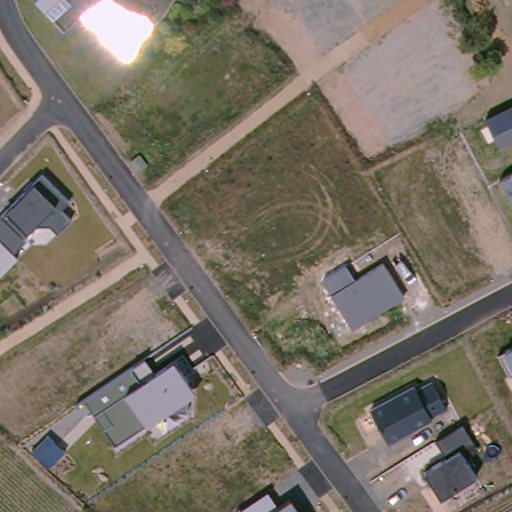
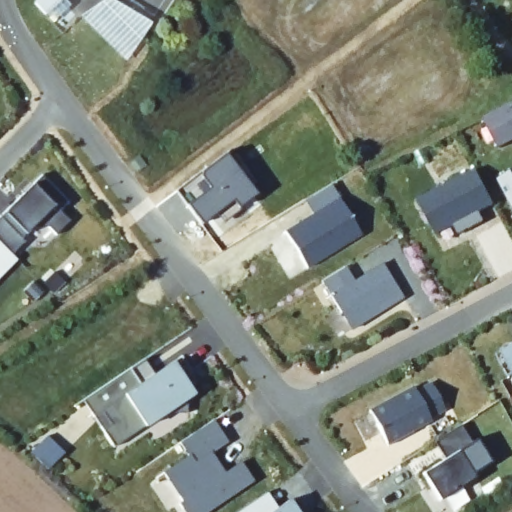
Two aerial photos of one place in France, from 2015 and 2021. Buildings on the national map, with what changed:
unchanged [(43,17),(27,0),(60,0),(43,17)]
unchanged [(78,15),(102,0),(108,0),(144,25),(121,60),(78,15)]
unchanged [(499,149),(483,120),(512,105),(512,142),(499,149)]
new [(228,150),(241,165),(237,167),(258,193),(240,206),(242,209),(225,222),(218,213),(203,223),(177,190),(228,150)]
new [(311,199),(303,186),(328,169),(360,219),(306,253),(283,217),(311,199)]
unchanged [(499,181),(512,173),(512,205),(499,181)]
unchanged [(46,226),(34,228),(27,237),(12,255),(17,259),(0,276),(0,217),(38,175),(66,201),(58,209),(71,221),(56,235),(46,226)]
unchanged [(471,181),(489,215),(474,224),(479,232),(455,246),(450,237),(433,246),(414,212),(471,181)]
unchanged [(352,329),(323,280),(348,265),(356,277),(384,260),(404,296),(352,329)]
unchanged [(503,354),(512,348),(512,371),(503,354)]
unchanged [(146,428),(144,424),(112,446),(83,401),(145,360),(155,374),(173,362),(194,392),(146,428)]
unchanged [(446,407),(429,417),(431,420),(388,443),(369,411),(413,387),(416,390),(433,379),(446,407)]
new [(211,455),(226,475),(242,464),(254,483),(210,512),(186,512),(180,503),(184,500),(166,471),(191,456),(181,441),(213,421),(228,443),(211,455)]
unchanged [(473,446),(458,456),(473,480),(441,502),(425,475),(446,461),(434,443),(461,425),(473,446)]
unchanged [(51,426),(69,442),(54,459),(36,442),(51,426)]
unchanged [(238,512),(269,492),(281,507),(291,500),(299,512),(238,512)]

